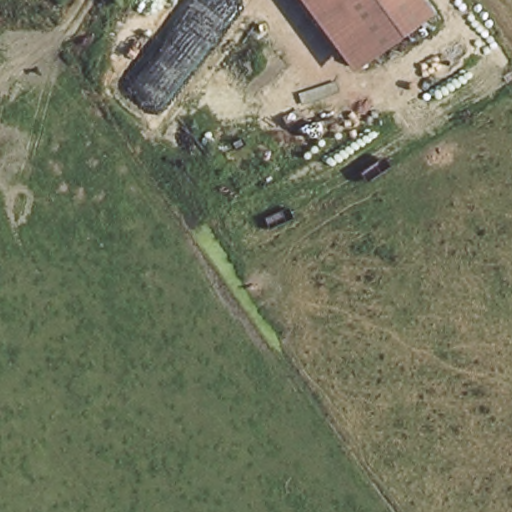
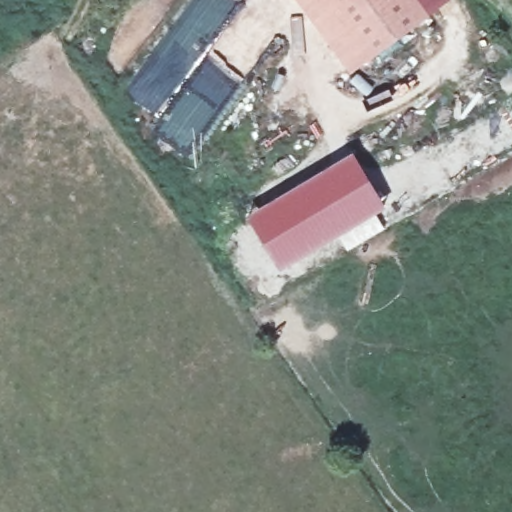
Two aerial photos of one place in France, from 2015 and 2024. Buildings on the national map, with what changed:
unchanged [(294,0),(416,0),(427,15),(343,65),(294,0)]
new [(347,251),(339,237),(278,267),(247,214),(353,150),(387,207),(377,212),(386,228),(347,251)]

